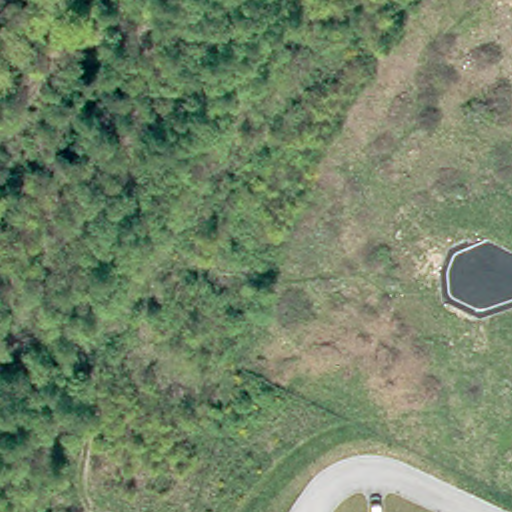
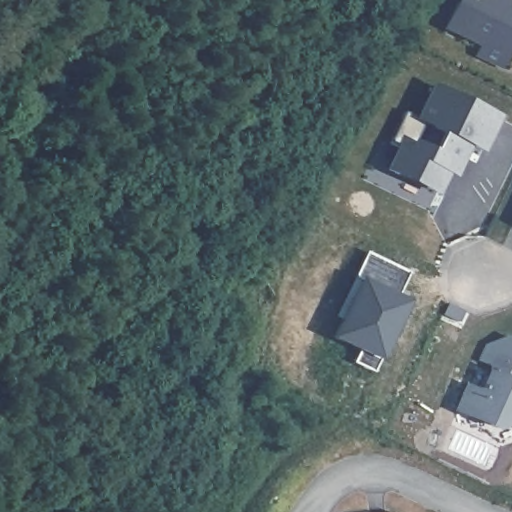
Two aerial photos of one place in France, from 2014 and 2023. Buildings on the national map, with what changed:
new [(512,9),(512,49),(502,71),(473,58),(479,45),(442,30),(455,0),(497,0),(496,2),(512,9)]
new [(484,154),(469,147),(455,179),(449,176),(439,197),(385,171),(394,151),(387,148),(404,112),(417,117),(432,85),(502,117),(484,154)]
new [(511,224),(512,222),(512,224),(511,224)]
new [(352,363),(359,349),(333,338),(359,281),(353,277),(365,251),(409,272),(396,297),(408,302),(373,372),(352,363)]
new [(507,423),(498,430),(453,411),(465,382),(468,383),(484,344),(507,337),(512,339),(512,426),(507,423)]

